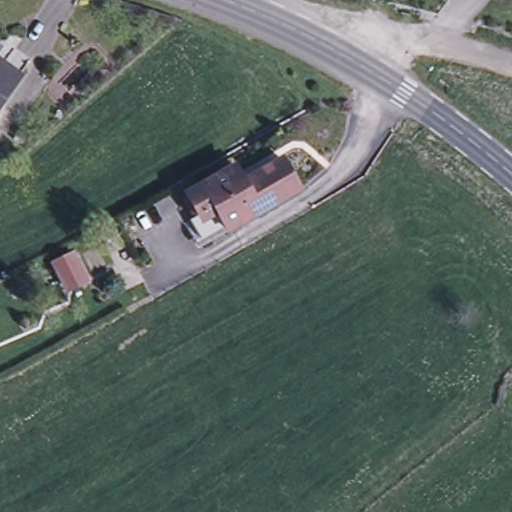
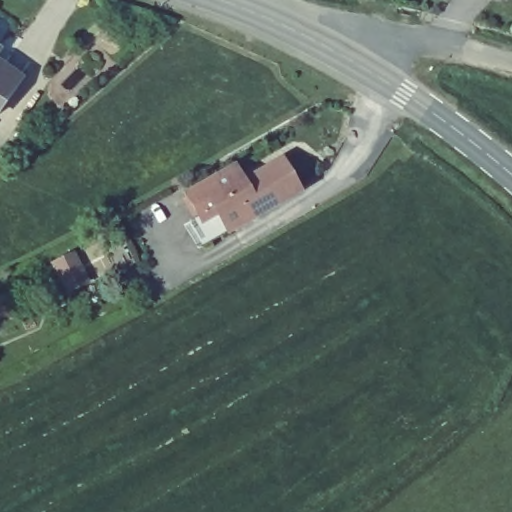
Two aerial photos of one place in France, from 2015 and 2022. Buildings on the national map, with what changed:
unchanged [(19,78),(0,106),(0,65),(19,78)]
unchanged [(299,191),(203,246),(190,221),(198,216),(186,195),(234,167),(242,183),(282,161),(299,191)]

